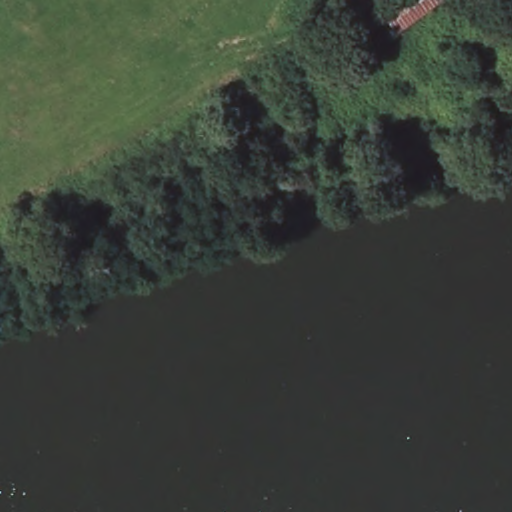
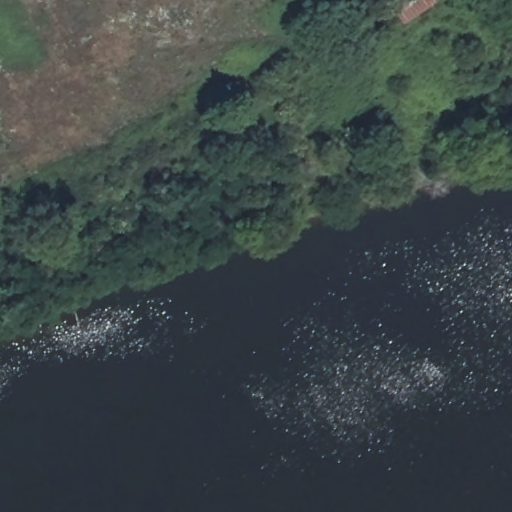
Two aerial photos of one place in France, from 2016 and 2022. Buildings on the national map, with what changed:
unchanged [(396,0),(442,0),(394,30),(379,11),(396,0)]

